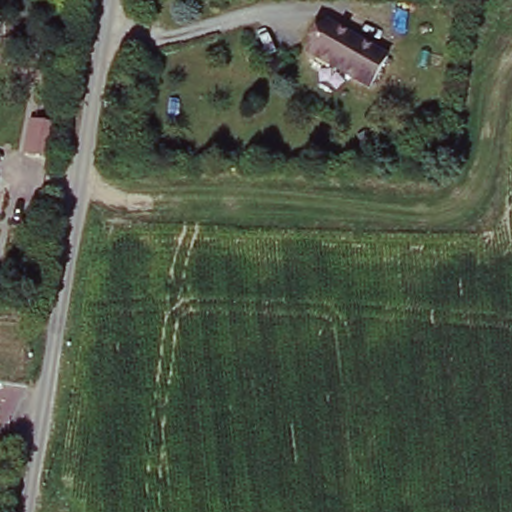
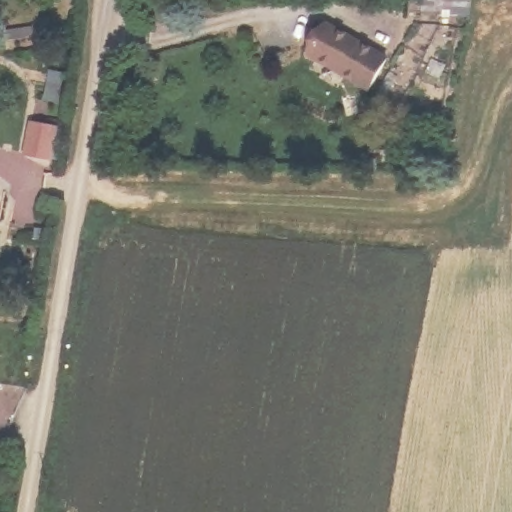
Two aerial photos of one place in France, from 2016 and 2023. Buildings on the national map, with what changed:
unchanged [(383,58),(367,89),(304,57),(321,27),(383,58)]
unchanged [(57,124),(53,156),(28,154),(32,121),(57,124)]

